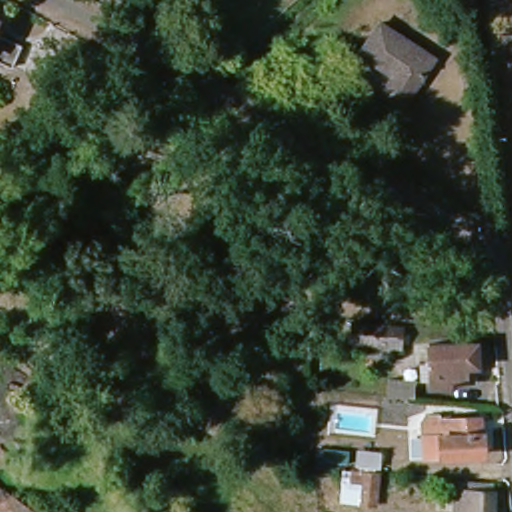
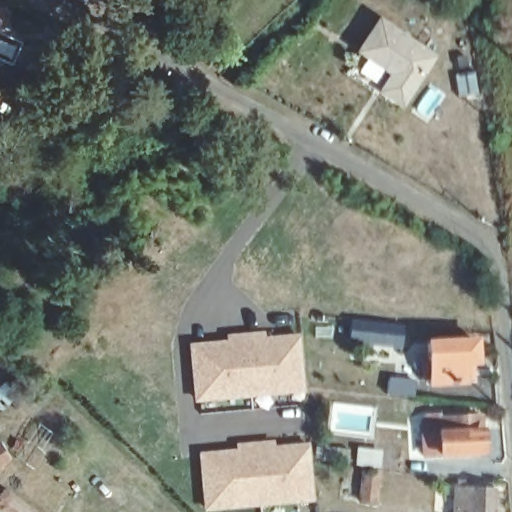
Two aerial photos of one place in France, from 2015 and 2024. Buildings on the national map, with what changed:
unchanged [(403,105),(383,91),(393,72),(362,52),(382,21),(435,57),(403,105)]
unchanged [(12,57),(0,52),(0,29),(20,37),(12,57)]
unchanged [(347,345),(350,316),(407,320),(405,350),(347,345)]
new [(226,340),(226,333),(264,330),(265,336),(299,333),(305,391),(194,401),(188,343),(226,340)]
unchanged [(480,362),(469,365),(470,381),(435,385),(430,346),(478,342),(480,362)]
unchanged [(386,393),(388,375),(419,376),(416,397),(386,393)]
unchanged [(488,453),(430,461),(424,420),(440,418),(441,422),(483,417),(488,453)]
new [(236,449),(236,442),(274,440),(275,445),(309,442),(315,500),(203,510),(198,452),(236,449)]
unchanged [(376,475),(374,504),(349,502),(351,472),(376,475)]
unchanged [(494,512),(456,512),(457,488),(494,491),(494,512)]
unchanged [(0,509),(0,490),(25,508),(30,512),(4,512),(0,509)]

